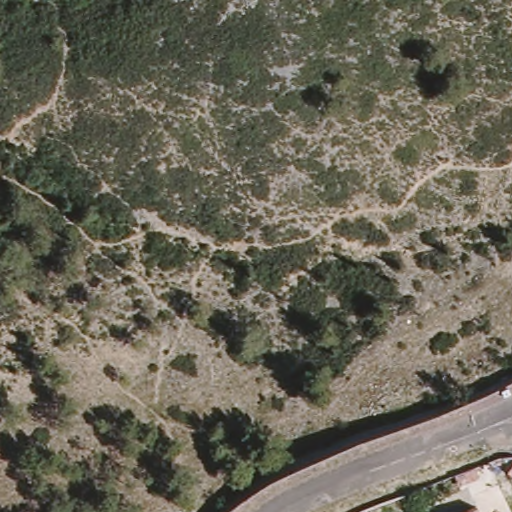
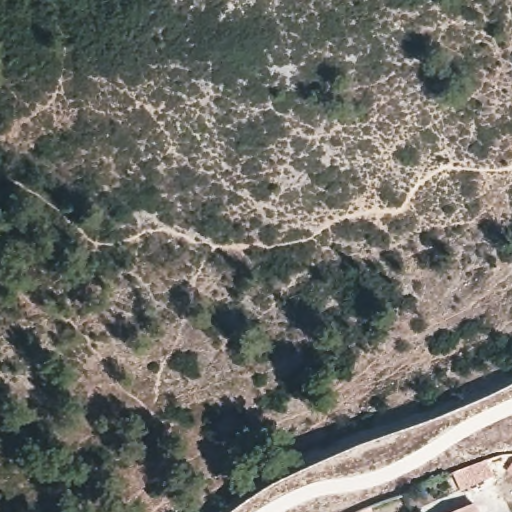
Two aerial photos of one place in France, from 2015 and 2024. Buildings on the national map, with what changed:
unchanged [(478,512),(466,512),(477,508),(478,512)]

